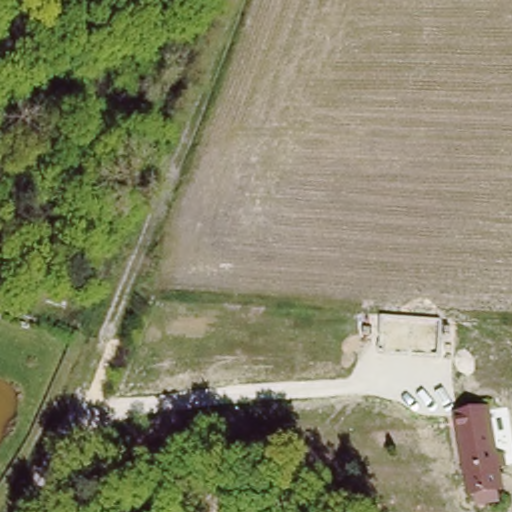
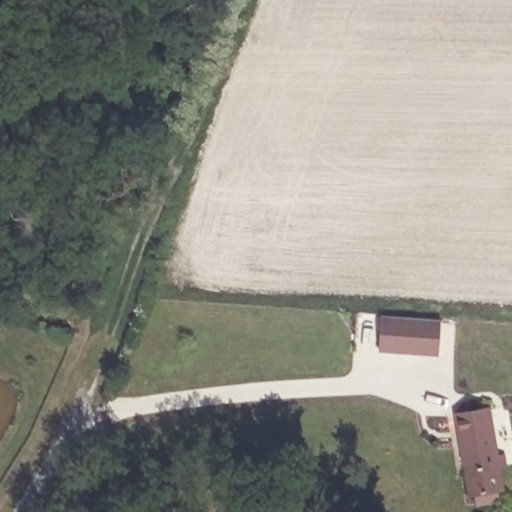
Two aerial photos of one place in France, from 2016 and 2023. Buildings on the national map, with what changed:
new [(382,315),(441,320),(440,357),(379,352),(382,315)]
unchanged [(467,501),(467,496),(455,425),(460,422),(461,412),(491,406),(505,494),(484,498),(467,501)]

